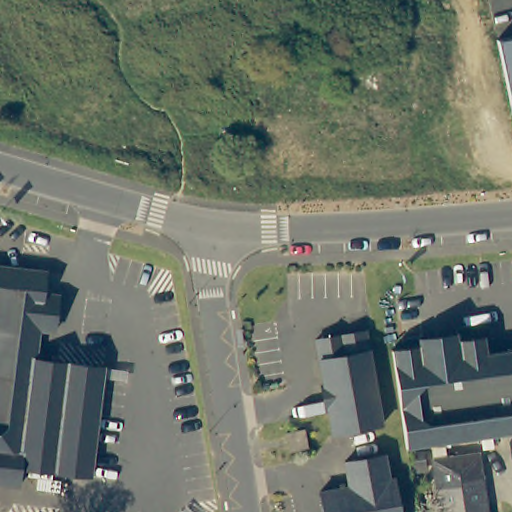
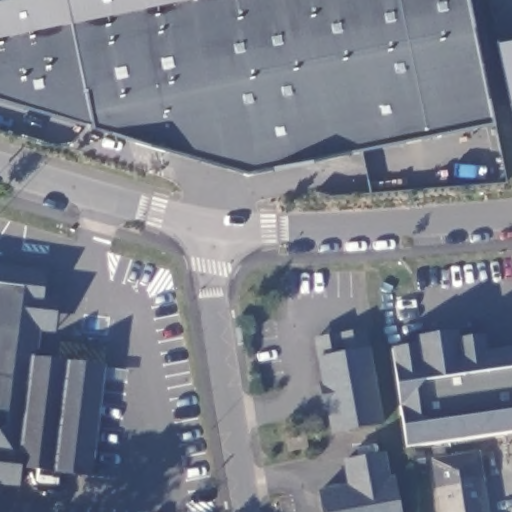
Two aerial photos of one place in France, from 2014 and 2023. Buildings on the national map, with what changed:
new [(250,170),(0,97),(0,0),(471,0),(492,119),(250,170)]
unchanged [(512,36),(512,110),(496,39),(512,36)]
unchanged [(22,471),(20,488),(0,486),(0,269),(45,274),(43,296),(58,298),(54,335),(39,333),(35,362),(89,368),(85,478),(22,471)]
unchanged [(368,332),(384,425),(334,434),(318,341),(368,332)]
unchanged [(480,341),(483,356),(512,352),(512,438),(495,440),(402,454),(388,354),(480,341)]
unchanged [(104,369),(91,479),(85,478),(89,368),(104,369)]
unchanged [(303,430),(307,447),(289,449),(286,432),(303,430)]
unchanged [(381,456),(386,479),(390,479),(397,512),(321,512),(317,492),(346,487),(342,462),(381,456)]
unchanged [(434,467),(478,461),(486,512),(441,512),(434,467)]

